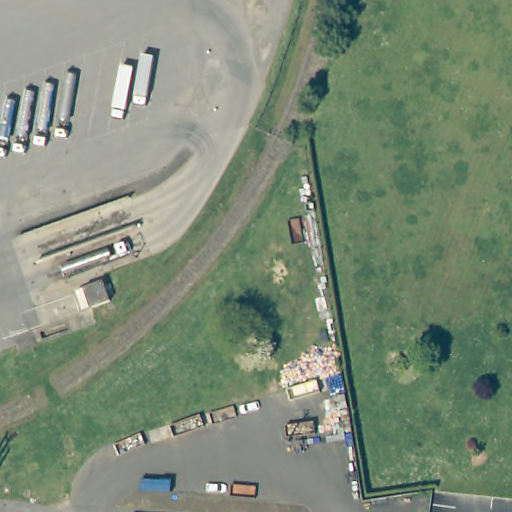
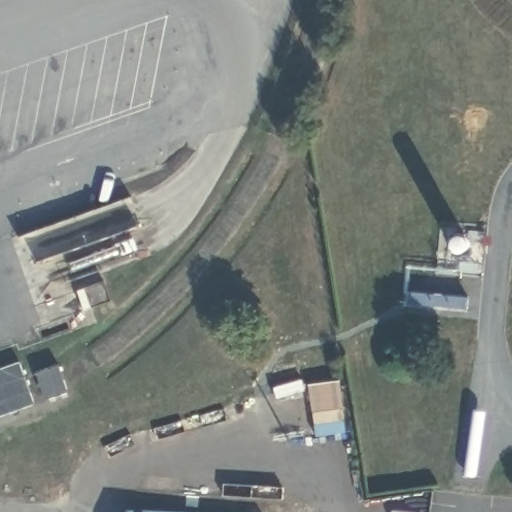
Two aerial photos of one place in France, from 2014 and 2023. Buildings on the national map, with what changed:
unchanged [(110,305),(90,311),(84,291),(103,284),(110,305)]
new [(33,404),(0,417),(0,369),(20,362),(33,404)]

